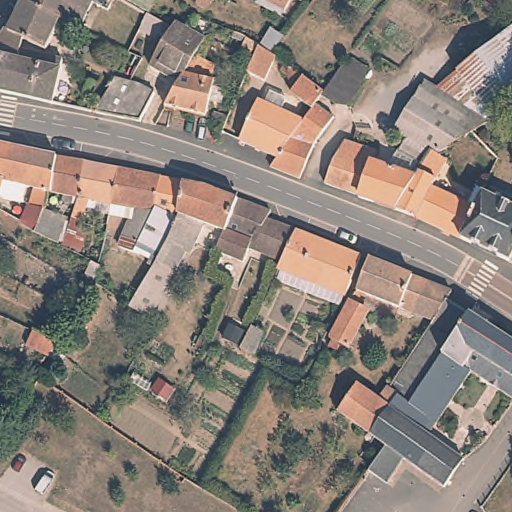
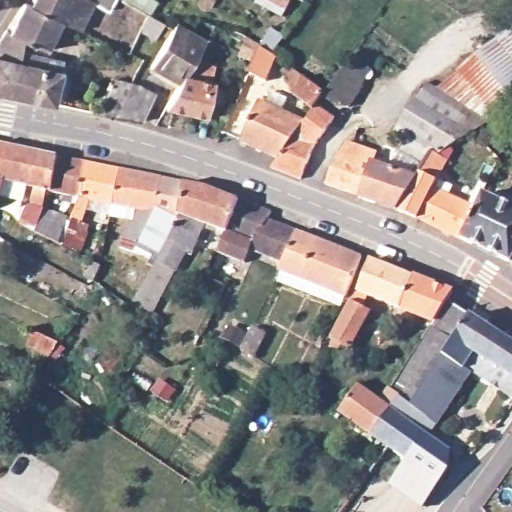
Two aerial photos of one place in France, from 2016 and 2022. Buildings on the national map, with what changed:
unchanged [(28,0),(120,0),(112,12),(90,0),(79,26),(60,18),(26,5),(28,0)]
unchanged [(299,0),(307,4),(300,18),(272,4),(274,0),(299,0)]
unchanged [(48,48),(25,38),(21,56),(63,65),(55,107),(0,97),(0,30),(2,27),(7,28),(20,2),(26,5),(60,18),(48,48)]
unchanged [(213,80),(217,81),(205,116),(167,103),(180,80),(168,73),(150,63),(174,22),(177,16),(195,26),(207,34),(197,51),(218,64),(213,80)]
unchanged [(432,105),(498,40),(512,27),(512,99),(468,133),(432,105)]
unchanged [(250,37),(248,42),(241,39),(244,34),(250,37)]
unchanged [(296,55),(285,82),(263,72),(275,45),(296,55)]
unchanged [(313,122),(323,108),(304,95),(309,87),(292,75),(301,62),(337,88),(355,65),(368,77),(353,96),(350,95),(347,99),(336,91),(328,101),(345,112),(342,116),(330,135),(319,155),(311,176),(282,166),(286,160),(313,122)]
unchanged [(159,94),(145,122),(125,118),(101,114),(121,80),(135,82),(143,84),(159,94)]
unchanged [(272,97),(278,101),(284,91),(297,100),(292,109),(313,122),(286,160),(247,138),(272,97)]
unchanged [(432,183),(418,174),(413,181),(394,209),(357,196),(373,162),(390,169),(410,138),(400,128),(420,98),(432,105),(468,133),(443,154),(448,159),(432,183)]
unchanged [(325,179),(331,164),(345,140),(377,153),(373,162),(357,196),(325,179)]
unchanged [(57,246),(34,233),(21,225),(36,190),(5,182),(0,192),(0,147),(27,153),(56,157),(57,160),(52,195),(44,212),(66,220),(57,246)]
unchanged [(52,195),(57,160),(87,165),(81,201),(74,199),(52,195)]
unchanged [(115,207),(81,201),(87,165),(123,171),(115,207)]
unchanged [(153,213),(139,246),(124,240),(135,211),(115,207),(123,171),(160,177),(185,182),(203,186),(222,191),(241,199),(228,225),(199,221),(149,317),(130,306),(156,257),(178,217),(153,213)]
unchanged [(413,181),(472,208),(458,238),(394,209),(413,181)]
unchanged [(512,264),(458,238),(472,208),(478,194),(512,211),(512,264)]
unchanged [(228,225),(241,199),(277,212),(276,216),(304,228),(288,260),(249,247),(240,261),(215,251),(228,225)]
unchanged [(351,294),(284,267),(288,260),(304,228),(368,255),(351,294)]
unchanged [(385,446),(369,436),(388,408),(397,394),(408,403),(453,343),(433,329),(436,326),(420,318),(422,313),(420,312),(382,296),(363,288),(376,258),(433,282),(459,293),(454,299),(475,314),(488,323),(512,340),(512,399),(475,374),(438,425),(431,436),(467,461),(448,487),(404,457),(386,483),(368,471),(385,446)]
unchanged [(69,277),(77,262),(99,274),(91,290),(69,277)]
unchanged [(382,296),(354,347),(335,336),(363,288),(382,296)]
unchanged [(21,352),(28,338),(52,350),(43,363),(21,352)]
unchanged [(339,415),(356,387),(388,408),(369,436),(339,415)]

